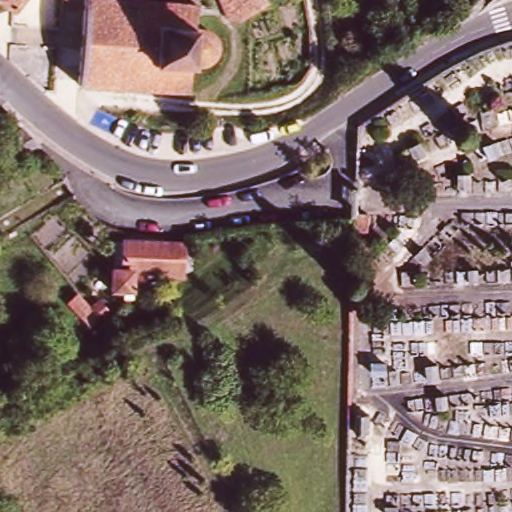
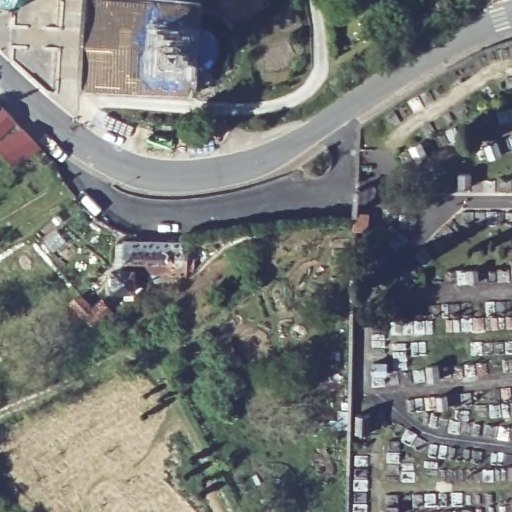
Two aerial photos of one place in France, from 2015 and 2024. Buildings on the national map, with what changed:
unchanged [(24,0),(12,16),(0,5),(0,0),(24,0)]
unchanged [(175,0),(267,0),(270,5),(249,18),(238,25),(227,22),(225,19),(224,16),(221,14),(207,11),(191,8),(192,28),(207,31),(216,38),(216,56),(213,64),(205,69),(188,68),(189,95),(78,88),(82,0),(175,4),(175,0)]
demolished [(15,121),(0,134),(0,106),(1,105),(15,121)]
new [(2,106),(10,112),(19,129),(23,126),(39,148),(11,168),(0,153),(0,108),(2,106)]
demolished [(9,162),(0,152),(0,141),(21,128),(38,146),(9,162)]
unchanged [(171,280),(171,275),(148,273),(147,278),(134,276),(133,289),(111,288),(115,239),(186,243),(185,275),(185,280),(171,280)]
unchanged [(89,306),(80,313),(70,300),(79,293),(89,306)]
unchanged [(90,308),(100,301),(110,313),(101,321),(90,308)]

